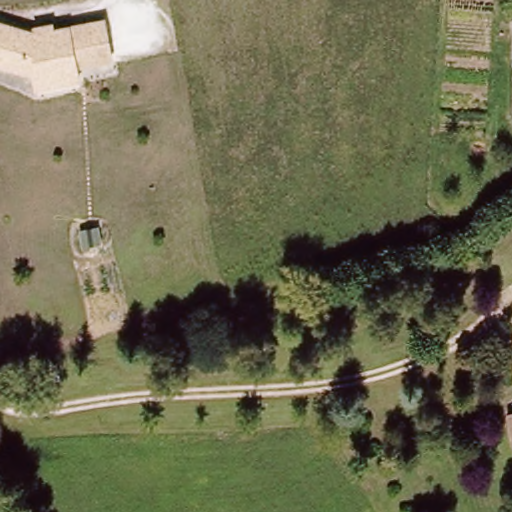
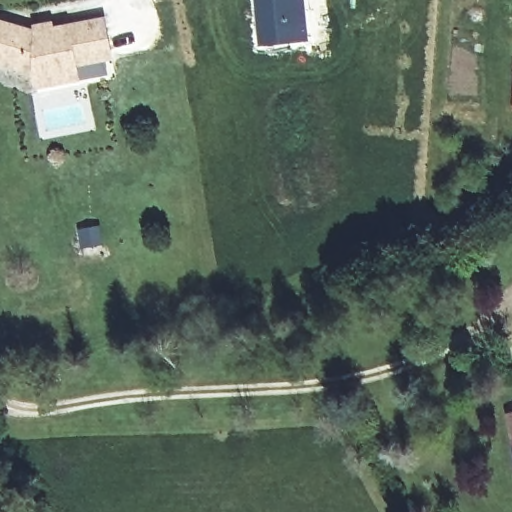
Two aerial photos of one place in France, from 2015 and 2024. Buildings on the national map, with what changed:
new [(310,41),(259,46),(253,0),(305,0),(310,41)]
unchanged [(31,72),(0,64),(0,23),(33,31),(31,26),(48,22),(49,27),(100,16),(108,55),(74,63),(76,77),(35,87),(31,72)]
unchanged [(508,416),(512,415),(512,437),(508,416)]

